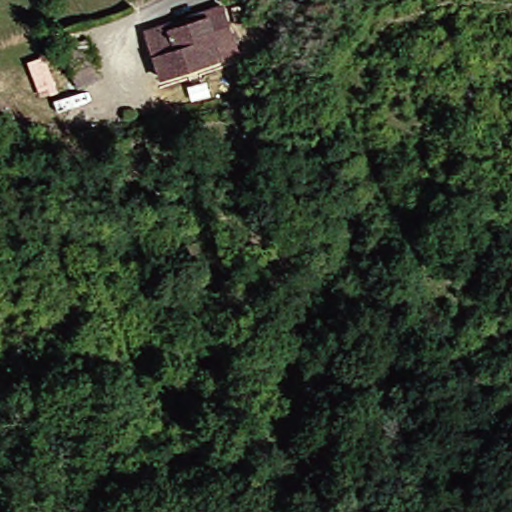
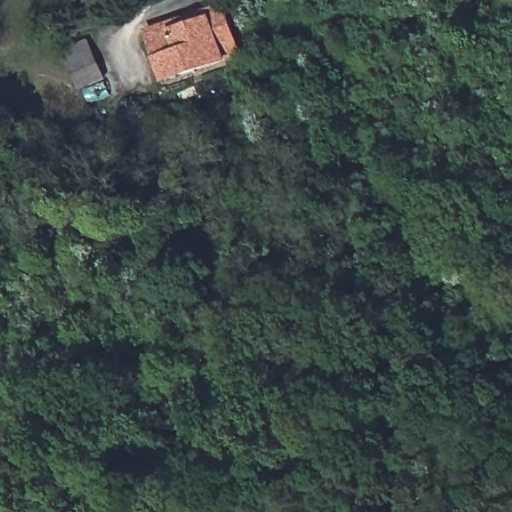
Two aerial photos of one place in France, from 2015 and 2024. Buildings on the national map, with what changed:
unchanged [(206,17),(222,11),(234,46),(214,55),(217,63),(154,80),(140,35),(206,17)]
unchanged [(76,89),(63,55),(60,46),(82,38),(86,47),(98,80),(76,89)]

